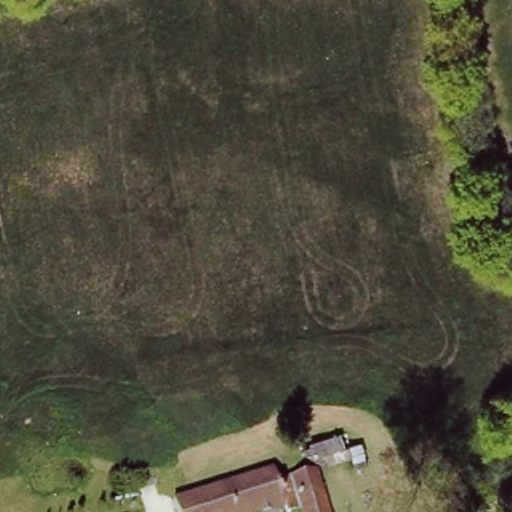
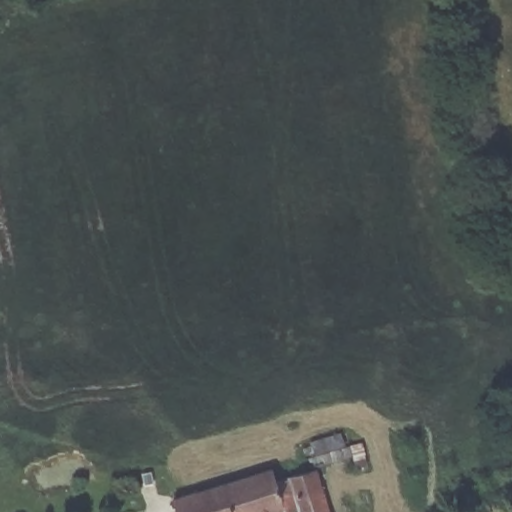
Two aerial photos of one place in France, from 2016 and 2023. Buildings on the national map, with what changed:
unchanged [(296,476),(322,469),(334,512),(307,512),(298,481),(296,476)]
unchanged [(178,495),(277,470),(281,485),(298,481),(307,512),(288,512),(287,509),(276,512),(184,512),(178,495)]

